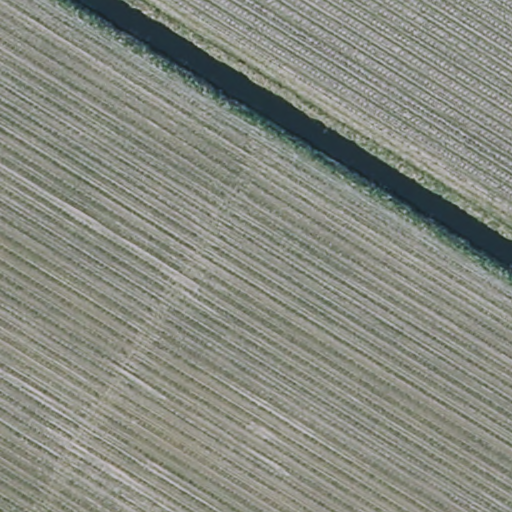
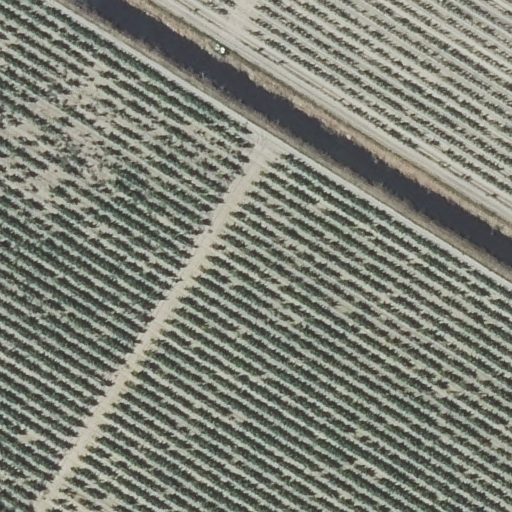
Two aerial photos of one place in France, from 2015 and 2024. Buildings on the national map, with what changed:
[]

